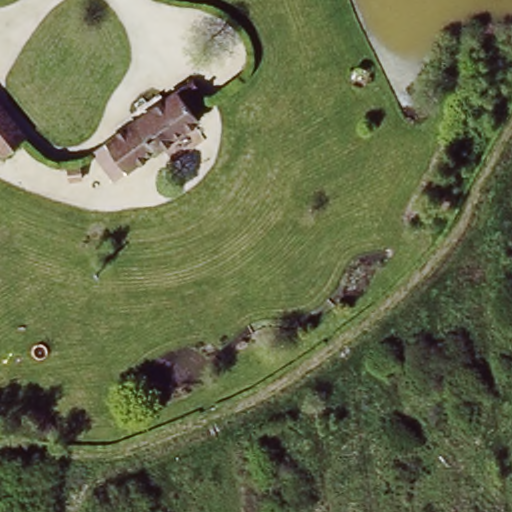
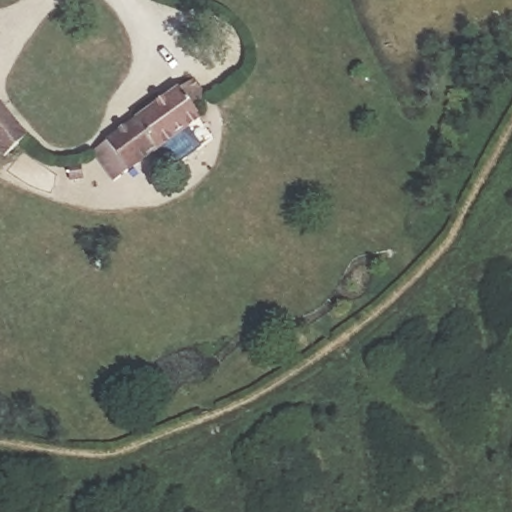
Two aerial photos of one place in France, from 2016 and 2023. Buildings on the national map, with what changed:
unchanged [(192,67),(212,90),(197,104),(203,113),(125,180),(113,167),(105,174),(89,156),(89,155),(190,63),(192,67)]
unchanged [(22,137),(4,154),(0,150),(0,104),(28,133),(22,137)]

